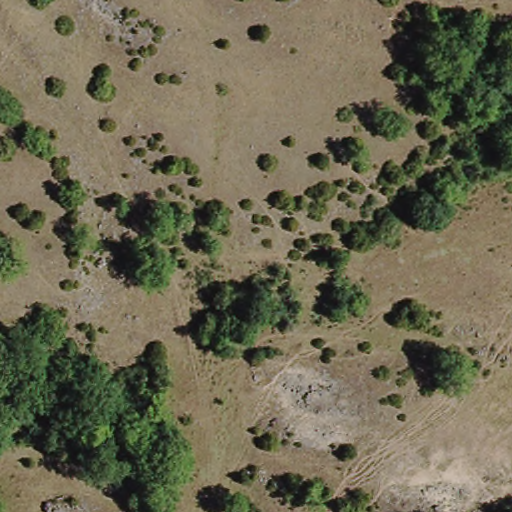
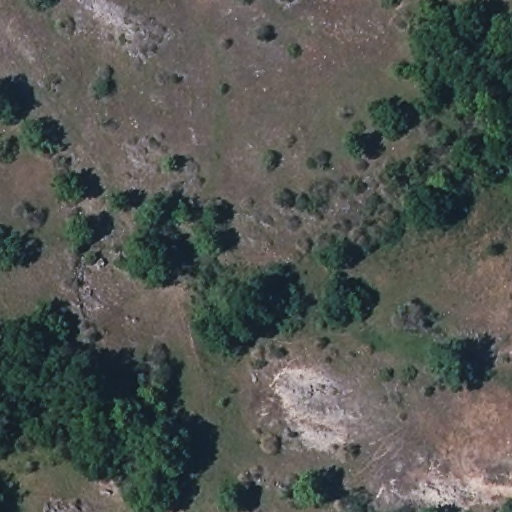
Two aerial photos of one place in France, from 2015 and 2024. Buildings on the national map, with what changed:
[]

